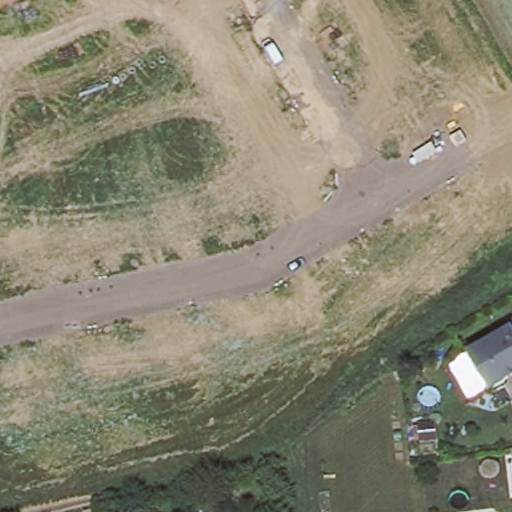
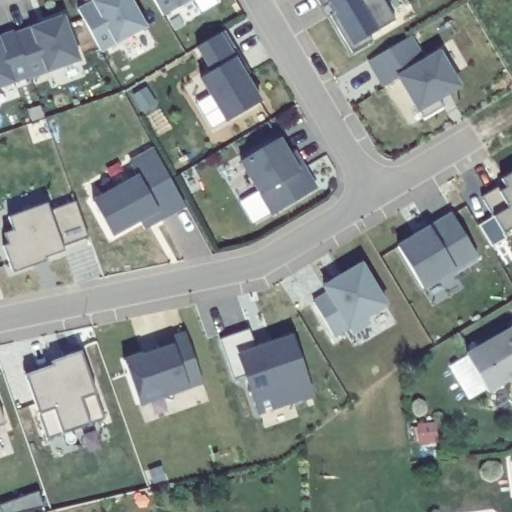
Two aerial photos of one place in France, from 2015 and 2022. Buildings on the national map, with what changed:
new [(105,0),(131,0),(148,31),(103,56),(80,14),(95,5),(105,0)]
new [(165,20),(152,0),(198,0),(165,20)]
unchanged [(397,25),(371,40),(375,45),(354,57),(331,19),(340,14),(335,6),(324,12),(317,0),(382,0),(397,25)]
new [(47,27),(66,20),(82,65),(32,82),(17,38),(33,32),(47,27)]
unchanged [(225,35),(246,70),(242,73),(261,106),(228,126),(202,82),(213,76),(198,51),(225,35)]
new [(417,110),(398,77),(382,87),(367,62),(414,36),(427,57),(440,49),(461,86),(440,100),(444,107),(422,118),(417,110)]
new [(240,202),(257,191),(240,160),(281,137),(290,154),(297,150),(317,187),(271,213),(254,223),(240,202)]
new [(482,196),(504,182),(502,179),(512,173),(512,227),(503,232),(495,217),(482,196)]
new [(9,247),(5,237),(14,234),(10,220),(49,206),(51,215),(77,205),(90,241),(64,250),(65,255),(13,273),(4,250),(9,247)]
new [(396,245),(429,226),(452,213),(477,258),(455,271),(424,290),(396,245)]
new [(328,296),(325,291),(344,280),(362,270),(387,310),(367,322),(370,327),(352,338),(349,332),(334,341),(314,307),(329,298),(328,296)]
unchanged [(467,350),(511,325),(508,320),(512,317),(512,373),(487,387),(467,350)]
new [(126,358),(157,350),(156,340),(187,331),(202,385),(187,390),(139,406),(126,358)]
new [(250,333),(257,354),(292,342),(311,398),(259,416),(246,380),(234,384),(220,343),(250,333)]
new [(52,365),(53,365),(56,373),(68,369),(62,355),(64,354),(79,348),(80,351),(105,422),(49,441),(25,375),(26,375),(52,365)]
new [(5,427),(0,429),(0,413),(5,427)]

